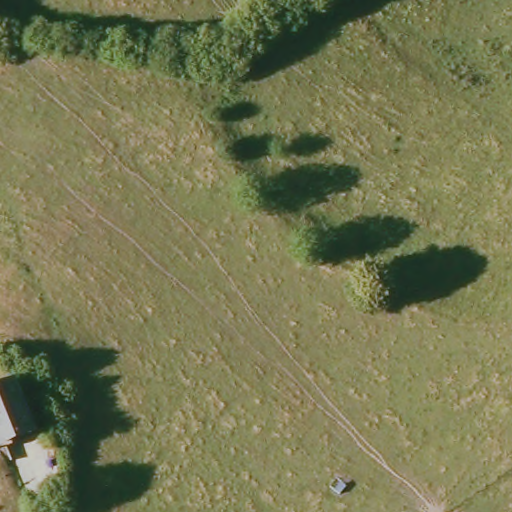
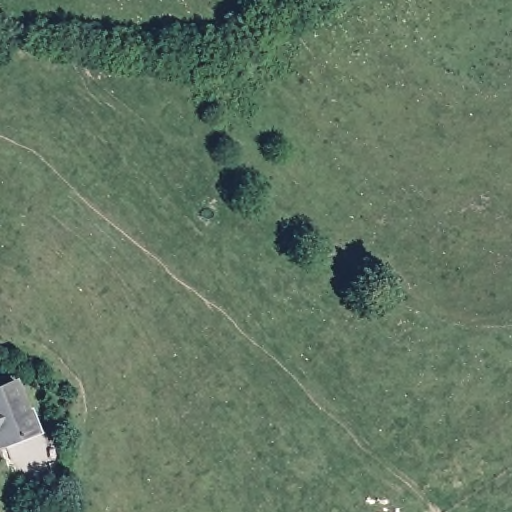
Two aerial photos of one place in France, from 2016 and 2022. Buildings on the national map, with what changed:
unchanged [(40,432),(10,441),(5,427),(0,428),(0,389),(20,383),(40,432)]

